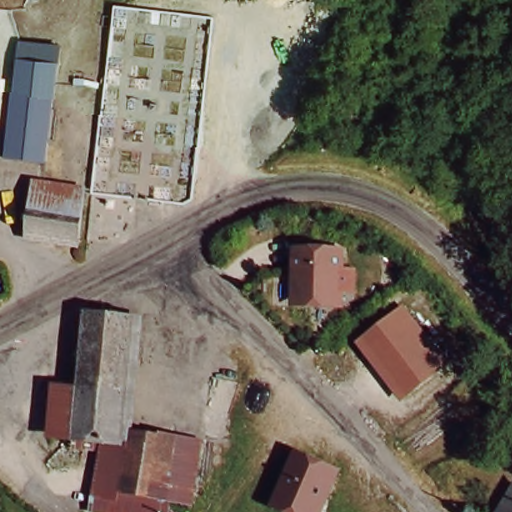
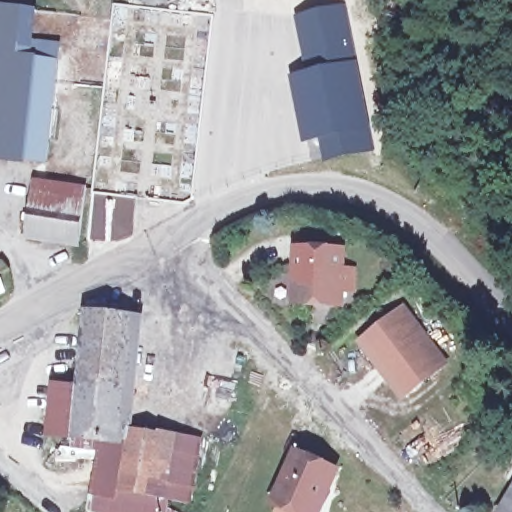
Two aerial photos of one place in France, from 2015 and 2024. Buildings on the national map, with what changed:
new [(34,39),(61,41),(47,164),(8,162),(0,161),(0,4),(36,8),(34,39)]
new [(347,4),(358,60),(303,70),(292,14),(347,4)]
demolished [(47,141),(42,174),(3,169),(18,51),(57,56),(47,141)]
new [(303,70),(358,60),(377,153),(322,162),(317,141),(302,144),(287,73),(303,70)]
unchanged [(85,192),(84,204),(80,237),(27,231),(31,198),(31,197),(32,185),(33,179),(87,186),(85,192)]
unchanged [(335,302),(296,303),(295,252),(345,252),(346,272),(336,272),(335,286),(335,302)]
unchanged [(448,365),(400,398),(358,340),(407,305),(448,365)]
unchanged [(143,316),(134,431),(199,437),(195,504),(171,500),(170,510),(175,512),(92,512),(105,445),(49,437),(53,384),(75,386),(87,309),(143,316)]
unchanged [(314,512),(303,512),(277,501),(297,456),(332,472),(314,512)]
unchanged [(504,511),(512,499),(512,512),(506,512),(504,511)]

